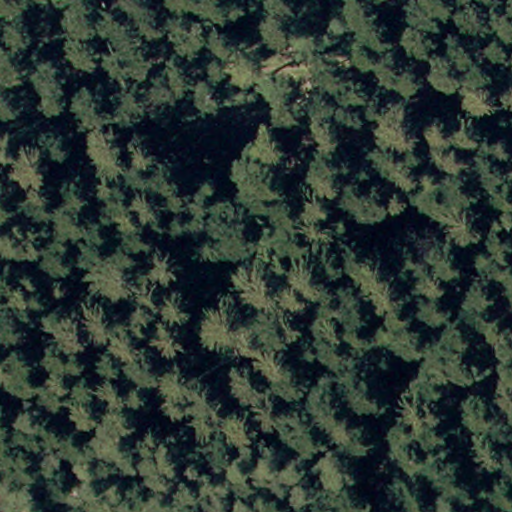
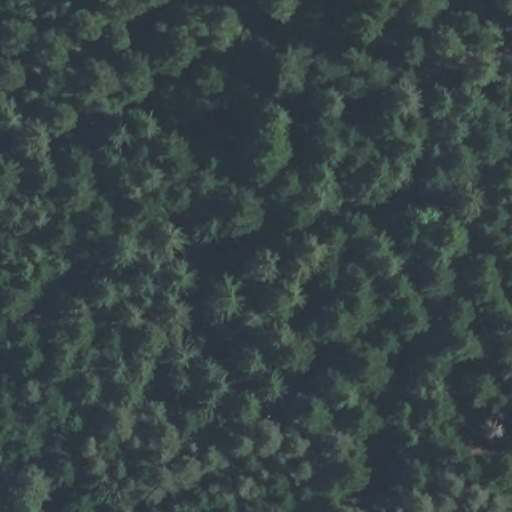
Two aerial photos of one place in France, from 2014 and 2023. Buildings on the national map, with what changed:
[]

